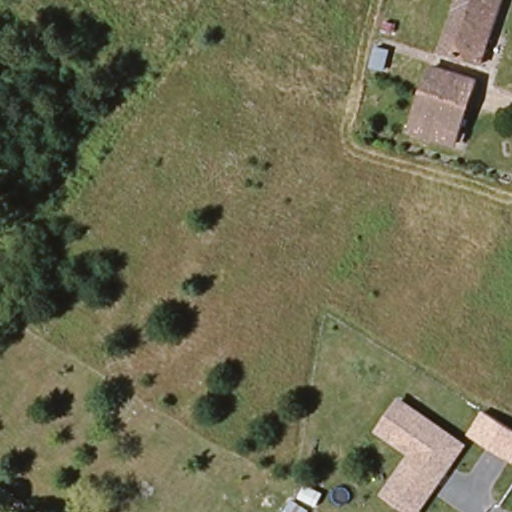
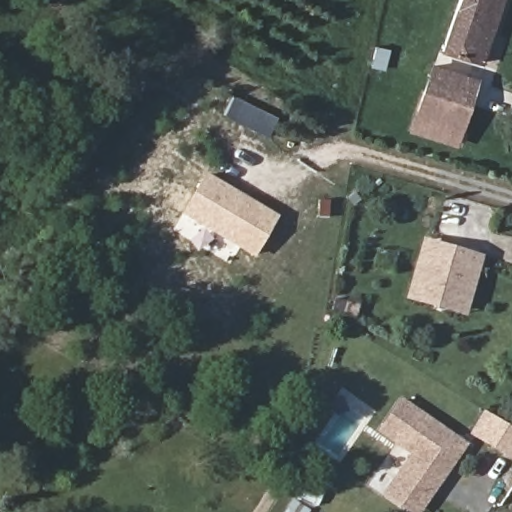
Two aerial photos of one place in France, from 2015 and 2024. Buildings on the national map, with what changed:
unchanged [(462,0),(511,0),(492,69),(446,55),(462,0)]
unchanged [(483,82),(458,149),(415,135),(437,67),(483,82)]
new [(277,215),(257,255),(183,212),(205,174),(277,215)]
new [(404,298),(421,238),(484,255),(466,315),(404,298)]
unchanged [(415,512),(383,490),(407,455),(378,432),(402,400),(466,443),(421,512),(415,512)]
unchanged [(483,411),(512,428),(512,462),(468,435),(483,411)]

